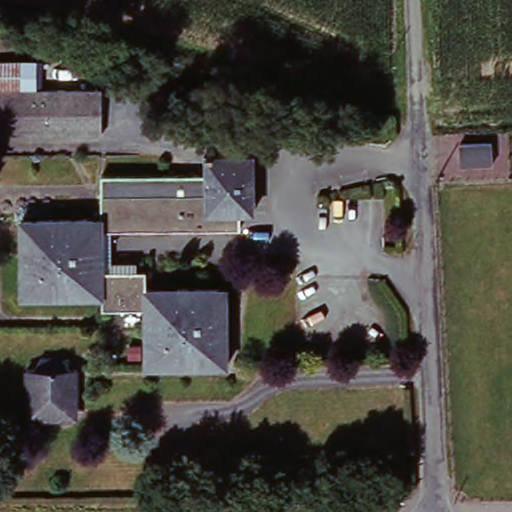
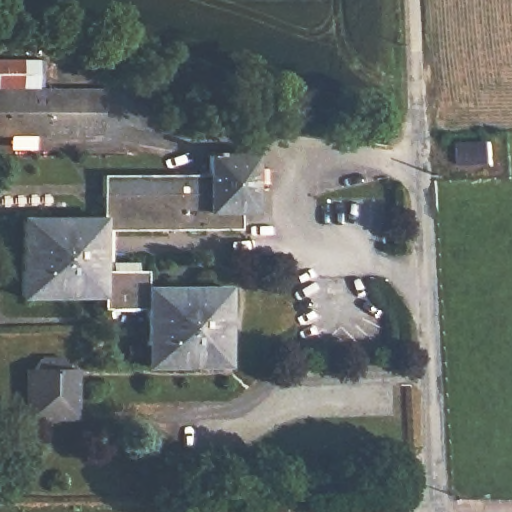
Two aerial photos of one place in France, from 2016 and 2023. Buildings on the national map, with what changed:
unchanged [(0,134),(0,61),(46,62),(46,90),(109,91),(109,135),(0,134)]
unchanged [(496,140),(497,157),(497,162),(466,163),(465,160),(465,141),(496,140)]
unchanged [(106,217),(106,175),(212,174),(211,155),(212,155),(212,151),(218,151),(218,154),(257,154),(257,215),(244,215),(244,230),(107,231),(109,271),(150,272),(151,289),(232,287),(232,367),(152,367),(150,308),(108,309),(107,297),(27,297),(26,219),(106,217)]
unchanged [(31,396),(31,370),(40,370),(47,360),(69,360),(75,369),(81,368),(82,396),(31,396)]
unchanged [(82,415),(76,421),(41,420),(31,410),(31,396),(82,396),(82,415)]

